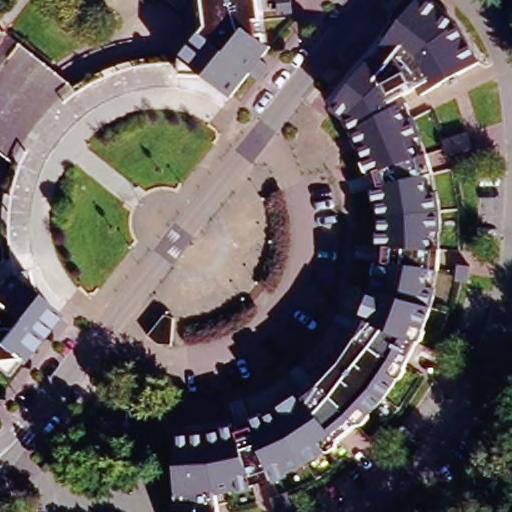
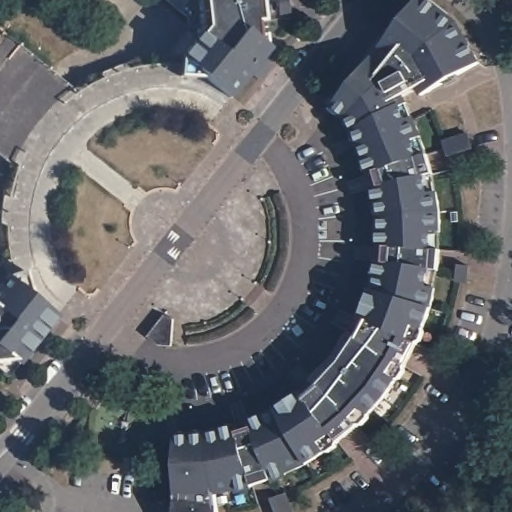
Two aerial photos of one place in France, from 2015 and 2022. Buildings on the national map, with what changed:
unchanged [(405,366),(383,397),(357,426),(337,441),(307,462),(270,478),(252,485),(215,495),(218,512),(176,512),(177,435),(207,434),(236,428),(237,433),(252,429),(250,423),(277,410),(302,395),(306,399),(320,386),(317,382),(337,360),(354,336),(359,338),(367,321),(362,319),(372,291),(379,261),(385,261),(387,249),(380,248),(380,217),(375,186),(382,185),(379,172),(372,174),(345,119),(332,109),(334,107),(372,60),(378,51),(382,46),(412,9),(419,0),(427,0),(455,25),(478,62),(420,95),(417,88),(402,96),(412,119),(420,137),(427,155),(432,174),(435,193),(439,211),(439,231),(439,250),(437,270),(434,288),(430,307),(416,343),(405,366)]
unchanged [(267,66),(257,80),(249,74),(230,96),(207,77),(181,75),(182,56),(202,32),(198,0),(262,0),(265,20),(269,48),(260,60),(267,66)]
unchanged [(279,13),(277,0),(291,0),(292,12),(279,13)]
unchanged [(20,271),(27,296),(51,315),(13,363),(2,377),(0,376),(0,279),(2,276),(20,271)]
unchanged [(174,319),(172,346),(165,348),(158,345),(147,336),(164,315),(174,319)]

